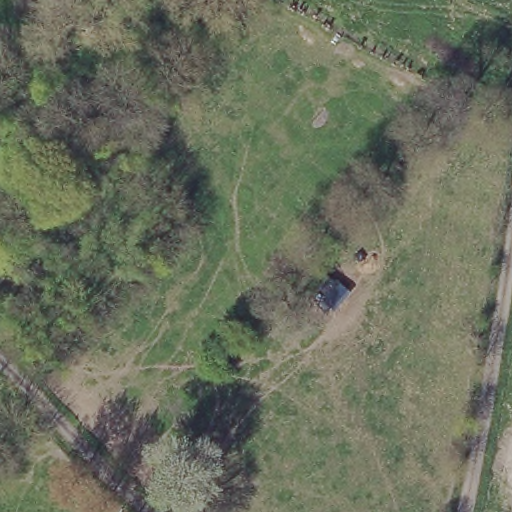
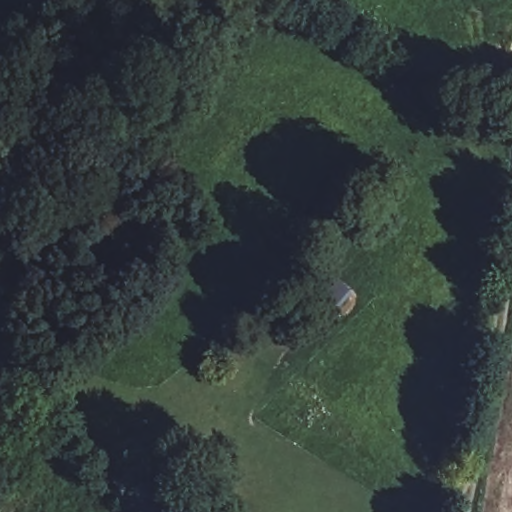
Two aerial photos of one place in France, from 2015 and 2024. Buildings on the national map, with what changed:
[]

